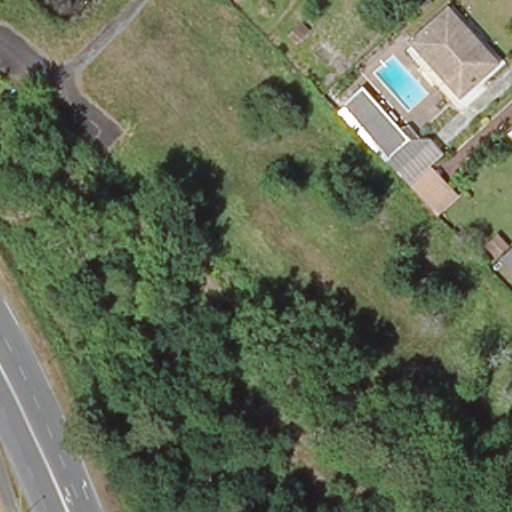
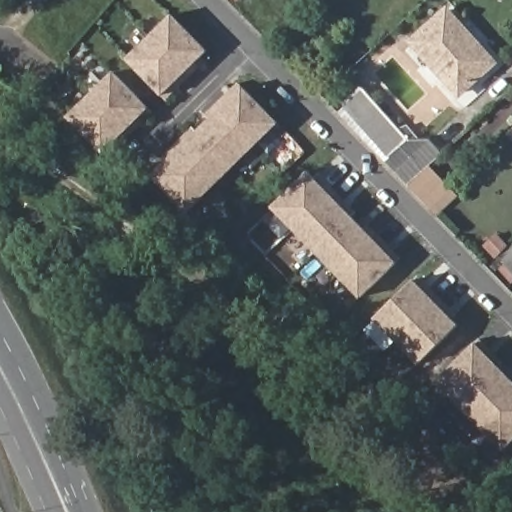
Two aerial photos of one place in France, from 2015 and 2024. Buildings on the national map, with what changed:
unchanged [(235,4),(231,0),(239,0),(235,4)]
unchanged [(493,62),(458,93),(412,42),(446,11),(493,62)]
new [(172,15),(207,51),(195,62),(199,67),(189,77),(149,37),(172,15)]
new [(162,95),(127,59),(149,37),(189,77),(178,87),(166,99),(162,95)]
new [(140,124),(130,135),(90,94),(113,72),(148,107),(152,112),(140,124)]
new [(239,82),(243,87),(278,122),(255,145),(216,105),(227,94),(239,82)]
unchanged [(362,87),(402,132),(408,139),(389,157),(342,104),(362,87)]
new [(68,116),(90,94),(130,135),(119,145),(115,140),(103,152),(68,116)]
new [(171,149),(181,139),(193,127),(198,131),(210,119),(206,115),(216,105),(255,145),(232,167),(210,189),(171,149)]
new [(436,214),(430,207),(408,186),(389,157),(408,139),(402,132),(409,125),(422,140),(432,140),(444,152),(430,165),(448,186),(450,189),(456,196),(436,214)]
new [(171,149),(210,189),(188,211),(152,175),(165,164),(160,159),(171,149)]
demolished [(448,186),(450,189),(430,207),(408,186),(430,165),(448,186)]
new [(318,182),(322,178),(332,189),(292,227),(270,205),(306,170),(318,182)]
new [(366,223),(376,234),(336,273),(314,250),(292,227),(332,189),(342,199),(354,211),(350,215),(362,227),(366,223)]
new [(386,244),(398,256),(394,260),(358,296),(336,273),(376,234),(386,244)]
unchanged [(512,249),(512,254),(510,252),(512,249)]
new [(394,339),(372,316),(411,278),(416,273),(428,286),(438,297),(394,339)]
new [(448,307),(453,312),(449,317),(456,323),(416,362),(394,339),(438,297),(448,307)]
new [(456,402),(434,380),(477,337),(488,347),(500,360),(512,372),(512,392),(478,425),(456,402)]
new [(478,425),(512,392),(512,436),(501,447),(478,425)]

